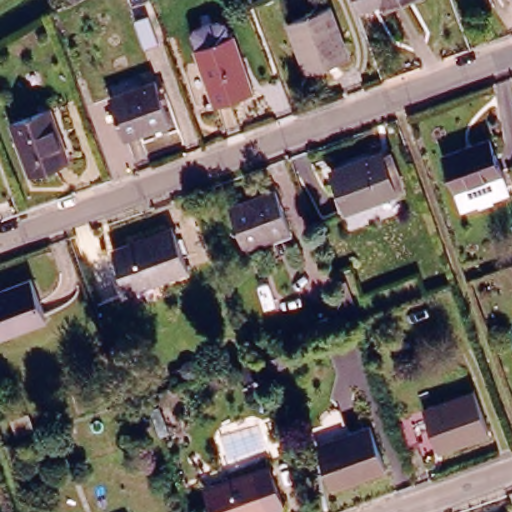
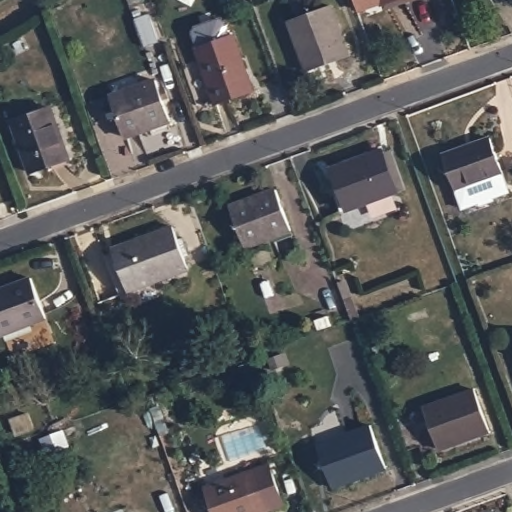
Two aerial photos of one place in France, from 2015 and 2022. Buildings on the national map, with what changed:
unchanged [(351,0),(374,0),(354,7),(351,0)]
unchanged [(377,0),(382,0),(378,1),(377,0)]
unchanged [(347,55),(305,71),(289,25),(331,9),(347,55)]
unchanged [(157,15),(165,41),(153,45),(145,20),(157,15)]
unchanged [(251,94),(215,107),(196,50),(231,37),(251,94)]
unchanged [(165,120),(120,137),(107,99),(152,82),(165,120)]
unchanged [(28,175),(12,122),(52,109),(69,160),(28,175)]
unchanged [(485,137),(498,175),(454,192),(440,154),(485,137)]
unchanged [(378,160),(384,158),(395,190),(341,210),(328,170),(375,153),(378,160)]
unchanged [(283,232),(240,249),(224,206),(267,191),(283,232)]
unchanged [(183,270),(122,292),(107,250),(167,226),(183,270)]
unchanged [(0,333),(0,288),(30,276),(44,317),(0,333)]
unchanged [(439,446),(430,423),(420,426),(417,433),(422,443),(407,450),(395,417),(470,387),(485,428),(439,446)]
unchanged [(383,468),(330,488),(313,442),(365,423),(383,468)]
unchanged [(275,503),(252,512),(207,512),(198,486),(262,462),(275,503)]

